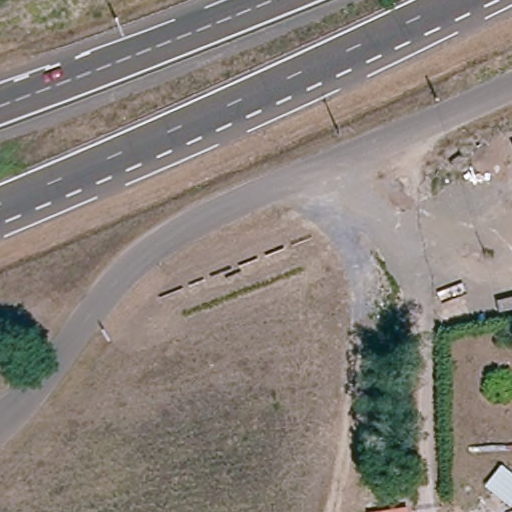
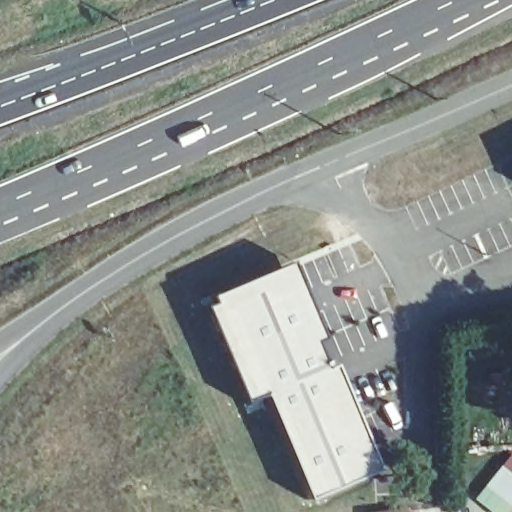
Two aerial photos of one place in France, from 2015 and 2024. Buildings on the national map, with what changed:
new [(322,338),(315,341),(326,367),(335,363),(377,468),(308,497),(265,391),(241,401),(202,306),(210,302),(207,296),(290,261),(322,338)]
new [(505,512),(491,512),(475,498),(512,452),(512,506),(511,505),(505,512)]

